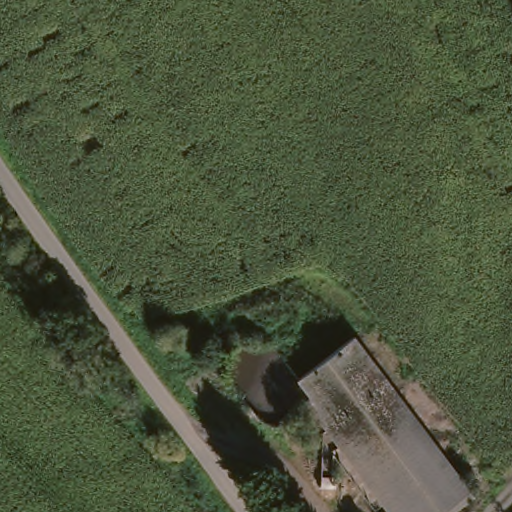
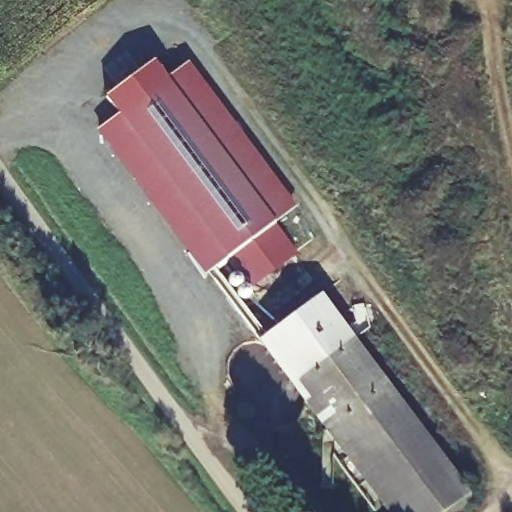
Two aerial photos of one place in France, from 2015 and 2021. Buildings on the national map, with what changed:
new [(165,77),(188,61),(296,206),(204,275),(95,130),(118,113),(105,96),(153,60),(165,77)]
unchanged [(381,512),(287,387),(349,340),(468,499),(450,512),(381,512)]

